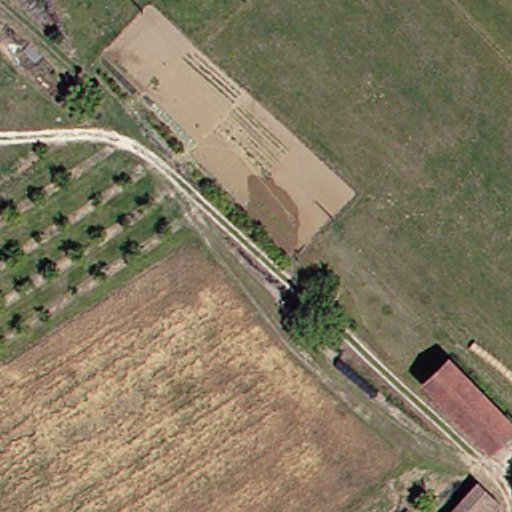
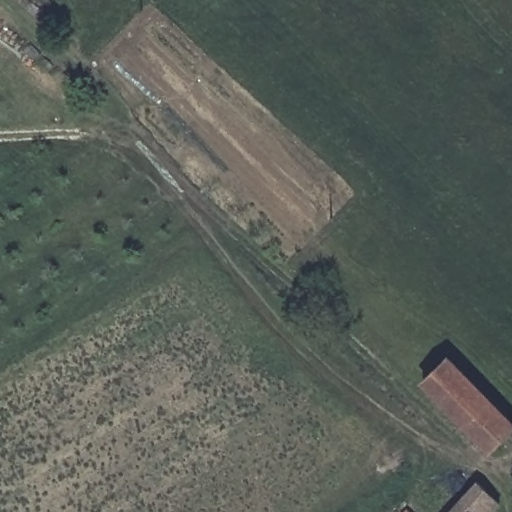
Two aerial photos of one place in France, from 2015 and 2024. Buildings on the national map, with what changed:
unchanged [(459,360),(512,411),(512,440),(503,451),(433,393),(459,360)]
unchanged [(485,490),(510,511),(509,512),(462,512),(485,490)]

